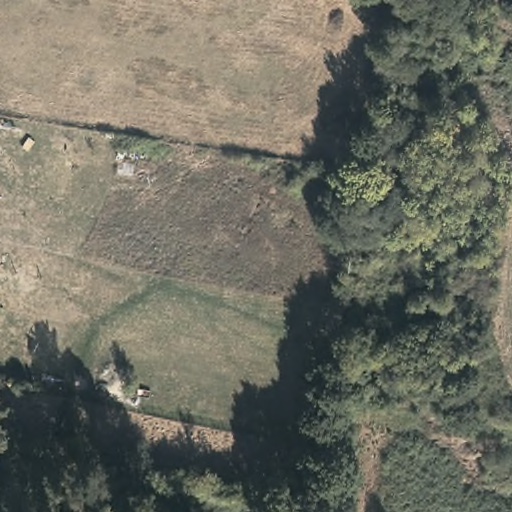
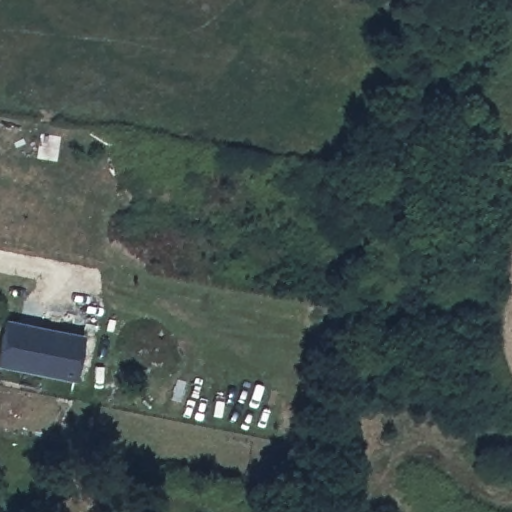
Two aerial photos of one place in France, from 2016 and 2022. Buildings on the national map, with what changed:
new [(10,321),(88,337),(79,381),(1,366),(10,321)]

